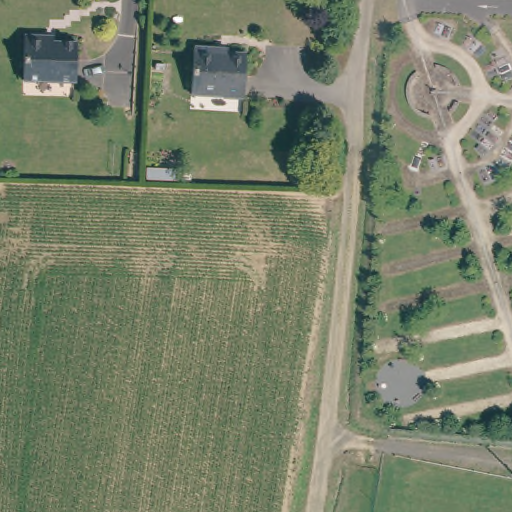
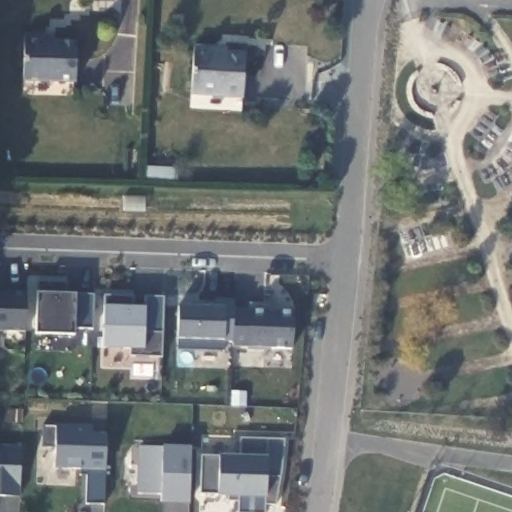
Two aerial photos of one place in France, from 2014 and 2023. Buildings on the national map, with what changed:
unchanged [(77,42),(76,81),(24,80),(25,35),(46,36),(46,41),(77,42)]
unchanged [(243,97),(191,95),(194,48),(217,49),(227,50),(227,54),(245,55),(243,97)]
new [(67,281),(67,292),(95,293),(94,328),(75,327),(75,334),(36,332),(37,280),(67,281)]
new [(27,291),(26,331),(0,330),(0,290),(27,291)]
new [(162,357),(130,356),(130,347),(102,347),(105,294),(134,295),(134,306),(145,306),(145,295),(165,296),(162,357)]
new [(177,348),(179,304),(216,305),(216,297),(235,298),(233,341),(225,341),(224,351),(177,348)]
new [(249,308),(250,302),(270,302),(269,309),(294,310),(293,347),(270,347),(270,349),(248,348),(248,346),(233,346),(234,308),(249,308)]
new [(92,426),(92,433),(107,433),(105,503),(86,503),(87,468),(55,467),(56,447),(42,446),(43,424),(92,426)]
new [(266,504),(266,512),(237,512),(237,496),(199,494),(201,456),(240,457),(240,438),(284,440),(276,505),(266,504)]
new [(22,446),(20,496),(0,495),(0,445),(22,446)]
new [(139,446),(164,447),(164,445),(191,447),(189,505),(161,503),(162,495),(137,492),(139,446)]

